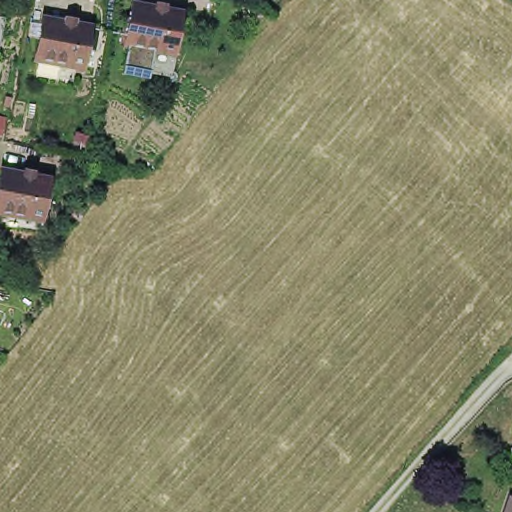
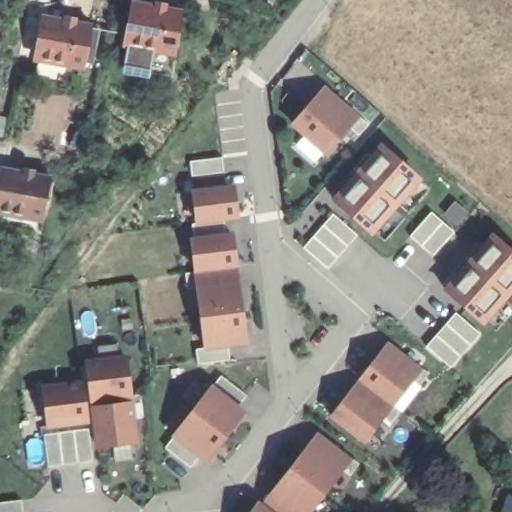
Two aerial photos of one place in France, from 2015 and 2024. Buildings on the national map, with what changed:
unchanged [(180,16),(173,58),(125,49),(133,7),(180,16)]
unchanged [(35,58),(43,16),(89,25),(81,67),(35,58)]
new [(369,124),(359,136),(351,129),(328,156),(292,125),(324,86),(361,117),(369,124)]
new [(372,232),(338,200),(383,148),(419,179),(372,232)]
new [(193,175),(191,161),(222,157),(224,172),(193,175)]
unchanged [(0,169),(47,178),(39,220),(0,213),(0,172),(0,169)]
new [(198,364),(196,350),(204,348),(197,288),(188,288),(186,273),(195,272),(191,237),(191,224),(196,224),(193,189),(236,184),(241,219),(225,221),(226,234),(235,233),(239,268),(249,344),(228,347),(230,360),(198,364)]
new [(454,232),(433,257),(410,238),(430,213),(454,232)]
new [(358,236),(329,270),(304,249),(333,214),(358,236)]
new [(447,289),(493,237),(512,254),(512,290),(483,321),(447,289)]
new [(481,333),(452,371),(426,350),(454,314),(481,333)]
new [(359,380),(386,341),(422,368),(430,373),(420,385),(415,380),(394,407),(401,411),(392,423),(385,418),(365,445),(329,417),(359,380)]
new [(91,402),(85,360),(128,355),(134,397),(91,402)]
new [(239,404),(248,411),(206,463),(198,457),(191,467),(166,447),(173,438),(213,384),(222,375),(248,395),(239,404)]
new [(91,423),(48,429),(43,384),(85,379),(91,423)]
new [(135,401),(141,443),(96,449),(91,406),(135,401)]
new [(92,461),(49,467),(44,435),(88,429),(92,461)]
new [(352,459),(357,464),(349,475),(344,470),(313,512),(250,512),(259,500),(263,502),(317,431),(352,459)]
unchanged [(512,502),(512,512),(498,512),(503,498),(512,502)]
new [(22,500),(23,512),(0,512),(0,503),(22,500)]

